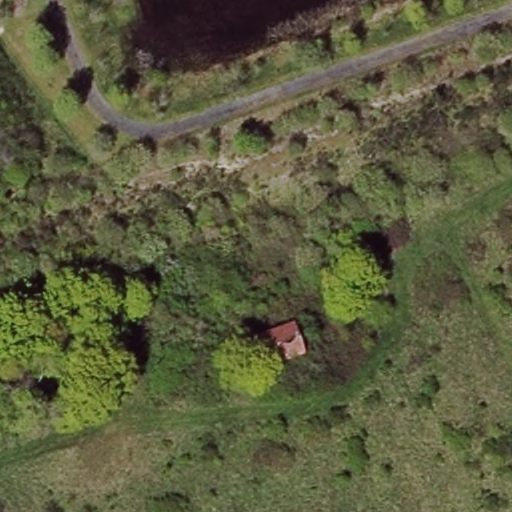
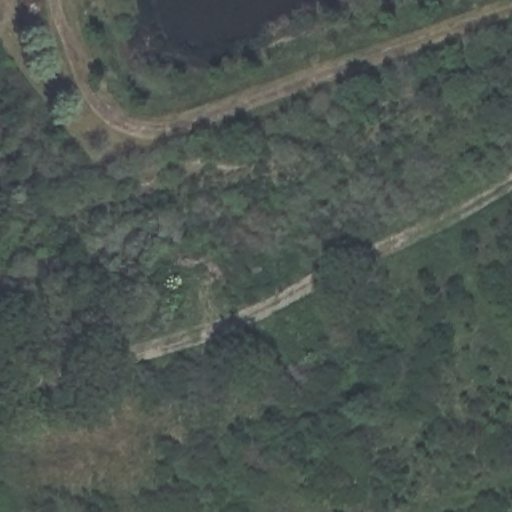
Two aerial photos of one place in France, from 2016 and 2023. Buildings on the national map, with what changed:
unchanged [(250,251),(255,260),(275,252),(288,284),(211,314),(195,271),(250,251)]
unchanged [(293,324),(306,356),(265,373),(254,341),(293,324)]

